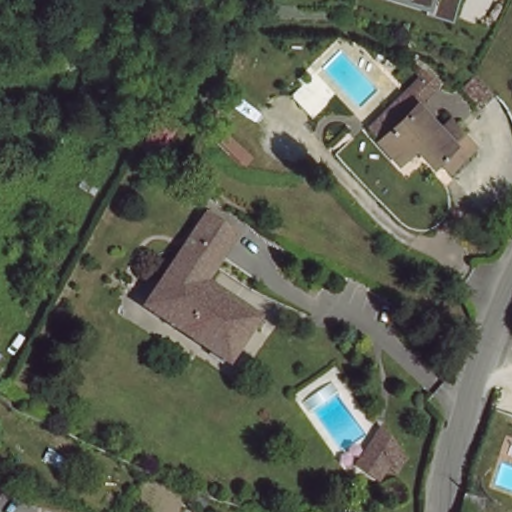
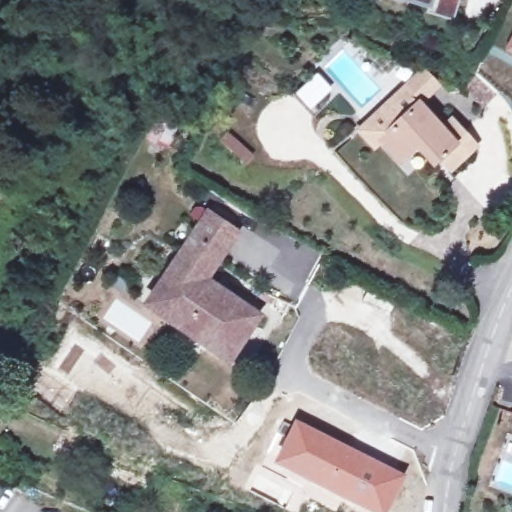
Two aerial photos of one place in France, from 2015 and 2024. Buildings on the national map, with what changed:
unchanged [(426,12),(425,7),(400,0),(459,0),(453,19),(426,12)]
new [(512,49),(512,51),(511,51),(512,49)]
demolished [(303,108),(296,99),(322,77),(330,85),(342,98),(321,117),(316,122),(303,108)]
unchanged [(383,115),(405,95),(421,79),(435,93),(418,109),(442,131),(451,123),(477,147),(451,173),(421,144),(402,162),(400,164),(396,159),(381,143),(368,130),(383,115)]
unchanged [(500,97),(489,109),(470,91),(483,80),(500,97)]
unchanged [(230,231),(200,278),(252,313),(234,343),(214,331),(204,347),(143,308),(203,213),(230,231)]
unchanged [(18,368),(3,388),(0,386),(0,355),(18,368)]
new [(406,473),(387,512),(369,512),(342,499),(272,462),(294,418),(406,473)]
new [(354,466),(381,424),(407,458),(396,474),(388,468),(378,482),(354,466)]
demolished [(388,461),(378,478),(376,482),(358,471),(375,444),(388,461)]
unchanged [(485,490),(481,509),(463,506),(468,486),(485,490)]

